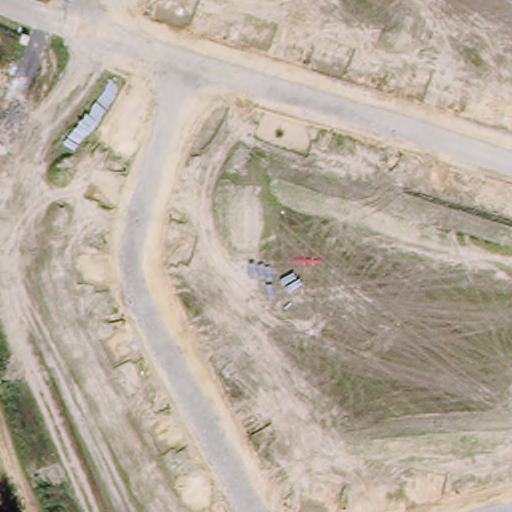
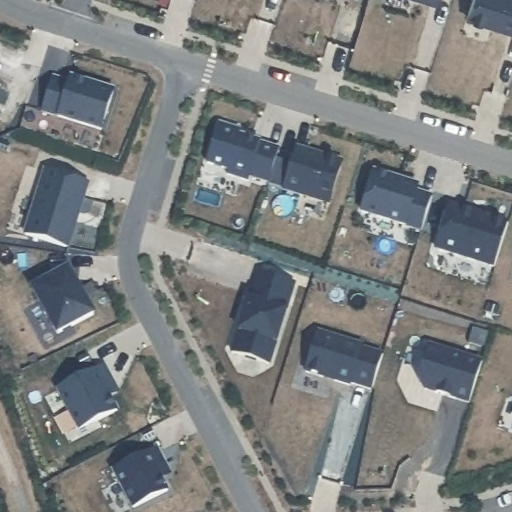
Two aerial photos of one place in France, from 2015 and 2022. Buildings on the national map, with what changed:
new [(435,5),(419,0),(437,0),(435,5)]
new [(489,0),(512,0),(512,32),(511,34),(481,24),(489,0)]
new [(53,82),(68,86),(70,81),(112,94),(100,134),(42,116),(53,82)]
new [(218,127),(240,133),(238,138),(260,144),(260,145),(279,151),(276,161),(268,185),(249,180),(248,184),(226,177),(228,173),(206,166),(218,127)]
new [(268,185),(276,161),(291,166),(296,150),(341,164),(329,206),(267,187),(268,185)]
new [(44,173),(87,187),(66,249),(23,236),(44,173)]
new [(373,174),(417,188),(415,194),(431,199),(421,233),(361,214),(373,174)]
new [(449,207),(507,225),(493,269),(435,251),(449,207)]
new [(512,256),(512,265),(509,264),(512,256)]
new [(67,270),(94,317),(57,336),(30,289),(67,270)]
new [(252,290),(254,290),(259,274),(294,285),(269,367),(232,355),(252,290)]
new [(305,374),(318,334),(361,348),(349,388),(333,383),(322,379),(305,374)]
new [(428,347),(481,363),(468,405),(423,391),(418,380),(428,347)]
new [(104,369),(112,384),(104,389),(116,413),(79,433),(58,393),(104,369)]
new [(157,452),(165,467),(156,472),(167,494),(133,512),(114,474),(157,452)]

